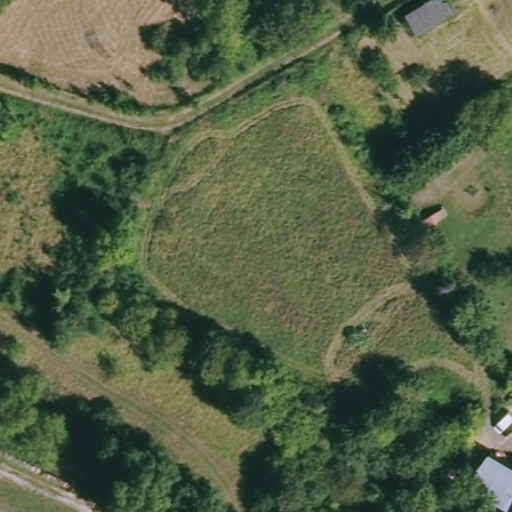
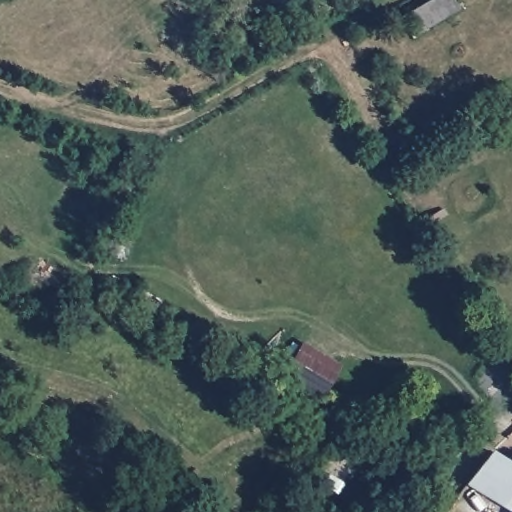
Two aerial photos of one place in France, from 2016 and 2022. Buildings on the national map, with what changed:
unchanged [(404,12),(427,0),(448,0),(457,12),(416,35),(404,12)]
unchanged [(507,512),(469,488),(495,458),(512,468),(512,512),(507,512)]

